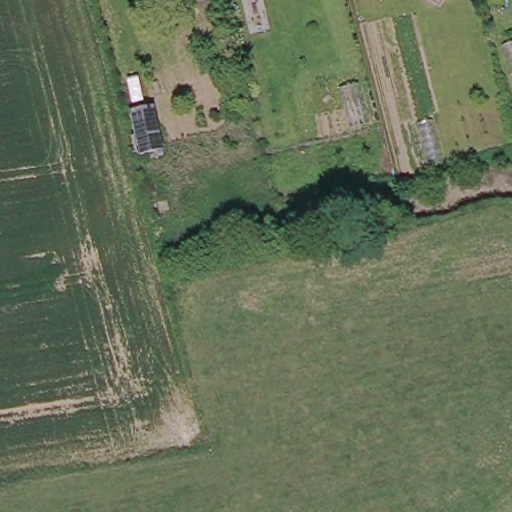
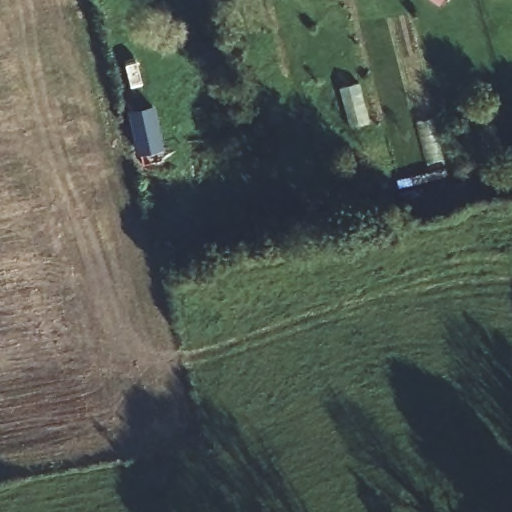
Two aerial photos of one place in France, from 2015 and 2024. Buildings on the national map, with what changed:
unchanged [(131,109),(156,104),(166,150),(140,152),(131,109)]

